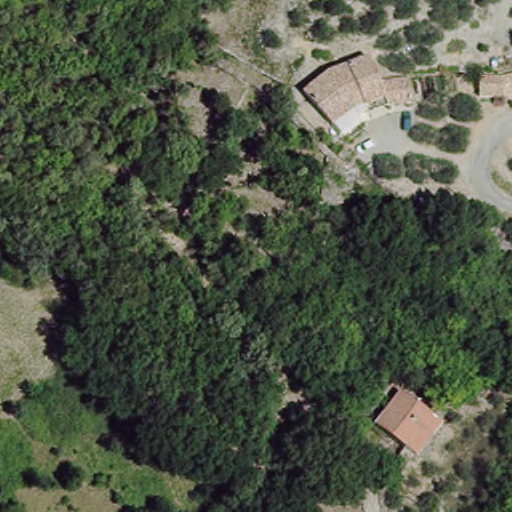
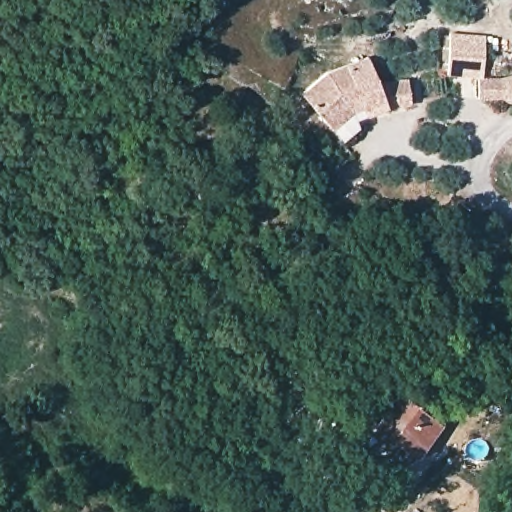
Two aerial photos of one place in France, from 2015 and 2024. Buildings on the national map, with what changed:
new [(446,28),(478,29),(478,65),(446,65),(446,28)]
unchanged [(324,75),(374,60),(383,82),(401,79),(407,102),(364,116),(360,110),(330,125),(300,94),(324,75)]
unchanged [(503,77),(512,75),(512,103),(505,96),(479,96),(478,77),(503,77)]
unchanged [(413,461),(401,451),(376,430),(405,394),(436,420),(442,426),(413,461)]

